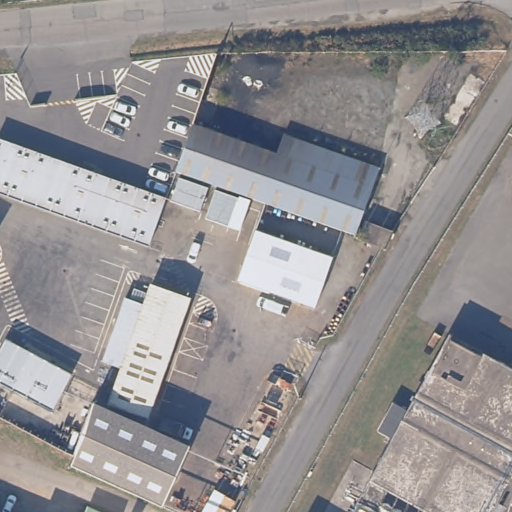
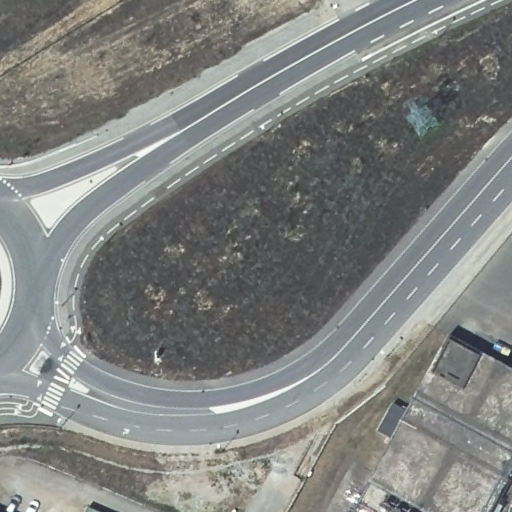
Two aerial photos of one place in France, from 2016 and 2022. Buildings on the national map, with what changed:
demolished [(465,125),(437,114),(439,109),(462,65),(473,70),(488,46),(501,56),(477,102),(465,125)]
demolished [(283,151),(289,133),(383,163),(358,232),(180,173),(198,122),(283,151)]
demolished [(165,200),(148,248),(0,195),(0,141),(165,200)]
demolished [(397,229),(392,243),(367,235),(372,220),(397,229)]
demolished [(333,256),(316,305),(239,280),(256,230),(333,256)]
demolished [(155,278),(193,292),(150,410),(112,397),(120,375),(135,334),(155,278)]
unchanged [(512,464),(488,512),(422,512),(359,481),(448,329),(512,367),(512,464)]
demolished [(71,376),(51,412),(0,384),(0,350),(5,340),(71,376)]
demolished [(191,445),(163,501),(74,457),(97,396),(191,445)]
unchanged [(82,500),(109,512),(77,512),(82,500)]
unchanged [(14,512),(0,512),(0,506),(14,512)]

